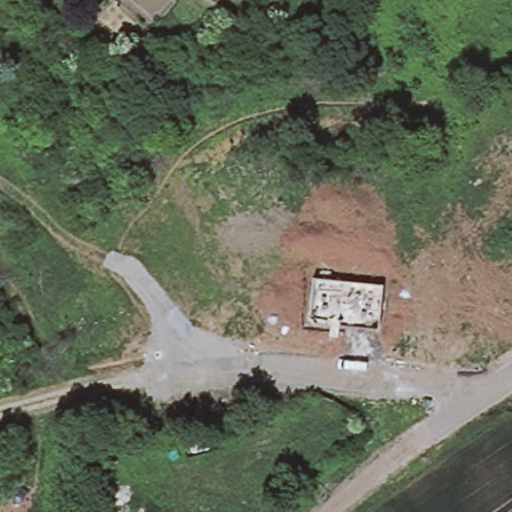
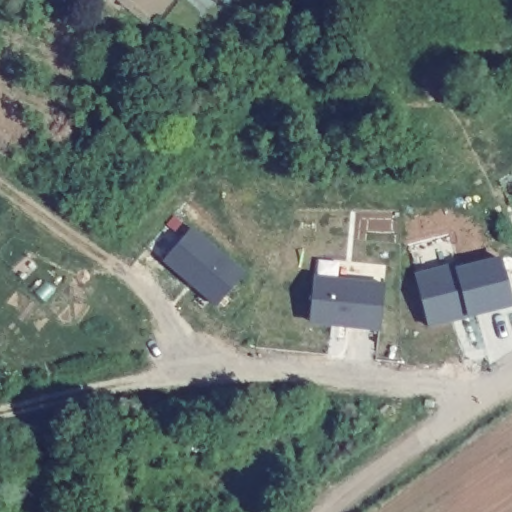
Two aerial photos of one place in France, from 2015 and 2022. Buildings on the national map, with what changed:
new [(247,273),(217,310),(162,264),(190,230),(247,273)]
new [(456,263),(457,267),(505,256),(512,284),(512,305),(430,325),(417,273),(456,263)]
new [(380,332),(309,325),(312,276),(385,282),(380,332)]

